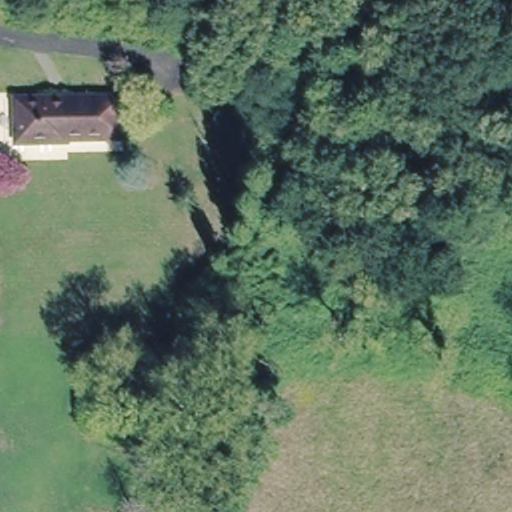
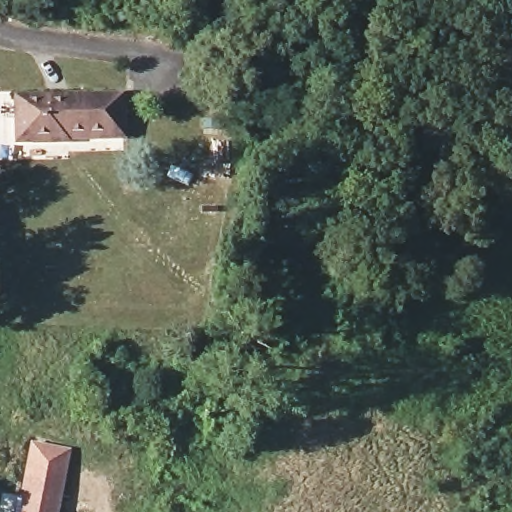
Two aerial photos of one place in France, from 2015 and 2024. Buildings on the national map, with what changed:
unchanged [(256,67),(251,52),(289,44),(292,59),(256,67)]
unchanged [(121,89),(124,141),(67,142),(67,145),(19,145),(19,115),(14,115),(13,90),(121,89)]
new [(20,493),(30,439),(71,447),(59,512),(0,512),(0,494),(1,490),(20,493)]

